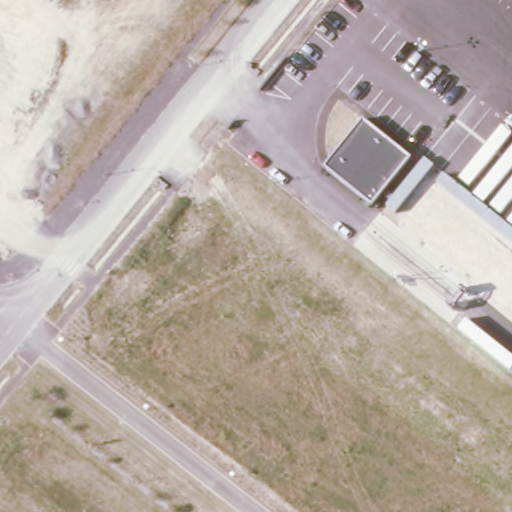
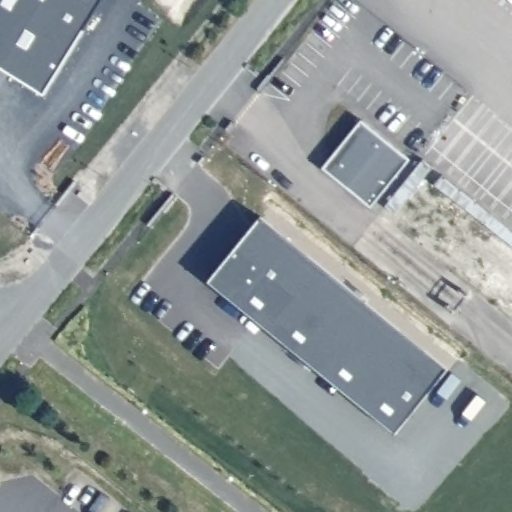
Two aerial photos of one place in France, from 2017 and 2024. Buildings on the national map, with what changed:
new [(0,66),(0,0),(104,0),(47,95),(0,66)]
unchanged [(411,159),(372,206),(324,168),(363,120),(411,159)]
new [(210,282),(262,219),(447,369),(395,433),(210,282)]

